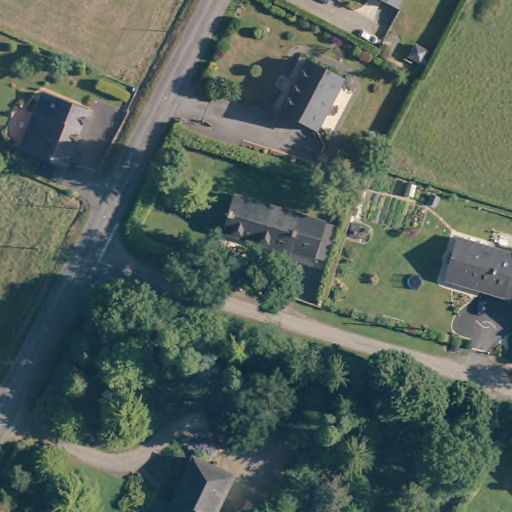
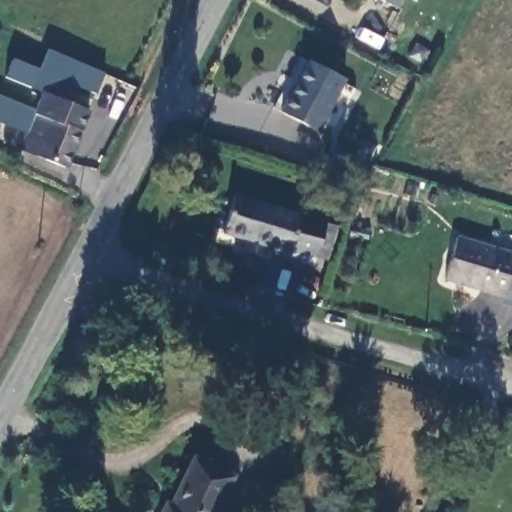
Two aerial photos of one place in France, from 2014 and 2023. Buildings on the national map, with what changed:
new [(11,58),(39,69),(46,49),(104,74),(97,94),(69,84),(64,98),(43,91),(5,78),(11,58)]
unchanged [(318,133),(279,114),(304,60),(346,79),(318,133)]
unchanged [(43,91),(82,104),(74,129),(35,115),(43,91)]
unchanged [(31,114),(25,134),(0,123),(0,100),(31,114)]
unchanged [(63,164),(20,151),(31,114),(35,115),(74,129),(63,164)]
unchanged [(335,217),(320,260),(280,248),(281,244),(234,229),(246,190),(335,217)]
unchanged [(457,239),(512,256),(512,300),(503,297),(442,279),(457,239)]
unchanged [(201,460),(242,481),(226,512),(175,512),(201,460)]

